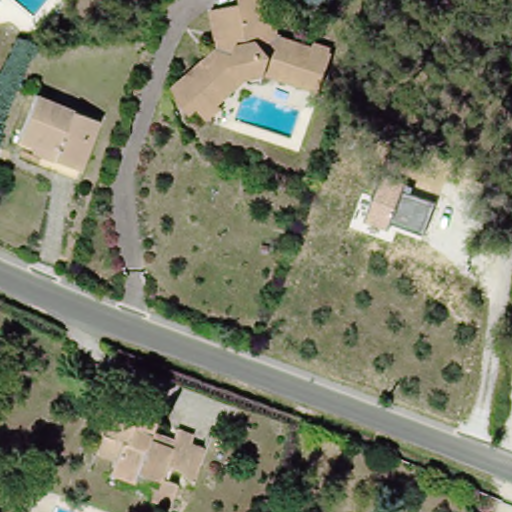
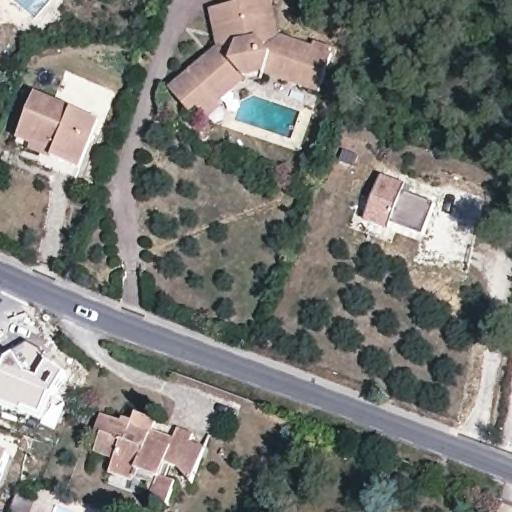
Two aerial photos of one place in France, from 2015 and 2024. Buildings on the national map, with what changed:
unchanged [(197,108),(191,114),(167,89),(191,69),(216,47),(208,9),(241,3),(240,0),(272,0),(279,36),(311,46),(314,41),(330,47),(329,52),(331,53),(318,93),(262,76),(259,81),(249,84),(244,81),(219,102),(220,109),(208,119),(197,108)]
unchanged [(15,152),(18,145),(35,101),(99,125),(79,175),(76,182),(50,172),(53,166),(15,152)]
unchanged [(246,152),(257,156),(254,165),(253,167),(242,164),(243,161),(246,152)]
unchanged [(379,186),(405,193),(403,200),(436,209),(427,241),(426,242),(394,233),(392,239),(366,232),(379,186)]
new [(40,350),(44,356),(48,363),(66,374),(55,397),(45,422),(23,414),(0,406),(0,377),(7,360),(15,355),(28,343),(40,350)]
unchanged [(133,487),(110,477),(115,465),(96,457),(103,440),(96,437),(103,420),(123,427),(125,423),(133,427),(136,417),(157,425),(153,436),(174,443),(178,432),(195,437),(192,446),(206,451),(193,487),(180,472),(167,468),(163,482),(177,487),(169,509),(151,502),(156,490),(135,482),(133,487)]
new [(0,481),(0,450),(10,454),(0,481)]

